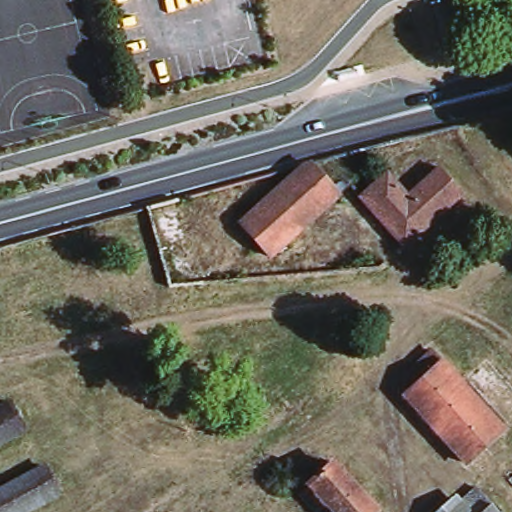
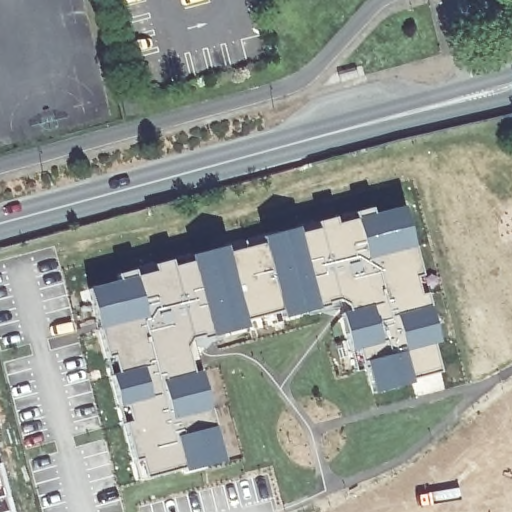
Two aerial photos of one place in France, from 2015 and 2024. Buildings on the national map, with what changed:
demolished [(308,163),(325,172),(334,183),(345,171),(355,187),(338,201),(271,264),(238,227),(308,163)]
demolished [(438,175),(461,199),(432,225),(410,201),(438,175)]
demolished [(410,201),(432,225),(403,252),(360,202),(387,177),(410,201)]
demolished [(176,200),(199,286),(167,288),(146,207),(176,200)]
new [(372,207),(374,212),(404,205),(415,247),(366,260),(365,255),(355,217),(353,212),(372,207)]
new [(317,227),(316,222),(336,216),(338,222),(355,217),(365,255),(320,267),(322,275),(313,277),(300,232),(317,227)]
new [(298,227),(300,232),(313,277),(321,305),(284,318),(282,311),(264,242),(262,237),(298,227)]
new [(264,242),(282,311),(247,320),(229,251),(264,242)]
new [(227,246),(229,251),(247,320),(248,327),(212,336),(192,261),(190,255),(227,246)]
new [(153,271),(152,265),(172,260),(173,266),(192,261),(212,336),(191,340),(189,347),(195,371),(157,380),(141,318),(147,317),(136,275),(153,271)]
new [(117,279),(116,275),(135,269),(136,275),(147,317),(141,318),(100,329),(90,286),(117,279)]
new [(430,306),(440,341),(433,343),(404,350),(396,315),(430,306)]
new [(371,307),(381,341),(351,349),(342,313),(371,307)]
new [(141,318),(157,380),(162,394),(153,397),(145,365),(115,372),(111,354),(106,355),(100,329),(141,318)]
new [(433,343),(445,388),(416,396),(412,382),(404,350),(433,343)]
new [(404,350),(412,382),(373,392),(365,360),(404,350)]
demolished [(412,368),(432,354),(500,431),(466,463),(406,399),(416,387),(405,376),(412,368)]
new [(115,372),(145,365),(153,397),(126,405),(120,407),(111,373),(115,372)]
new [(195,371),(202,370),(211,411),(170,421),(162,394),(157,380),(195,371)]
new [(130,422),(126,405),(153,397),(162,394),(170,421),(173,435),(182,466),(145,476),(126,422),(130,422)]
demolished [(28,432),(0,448),(0,406),(11,400),(28,432)]
new [(216,424),(226,460),(183,471),(182,466),(173,435),(216,424)]
demolished [(303,493),(327,470),(366,512),(320,512),(303,493)]
demolished [(58,501),(37,512),(0,512),(0,495),(42,472),(58,501)]
demolished [(456,496),(461,502),(475,489),(496,512),(439,512),(456,496)]

